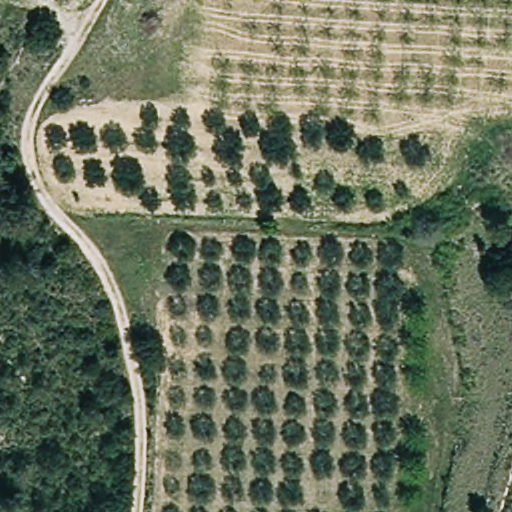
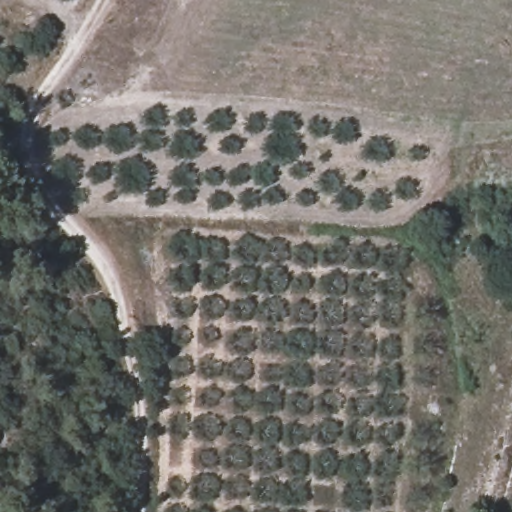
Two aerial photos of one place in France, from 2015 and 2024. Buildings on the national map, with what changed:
[]

